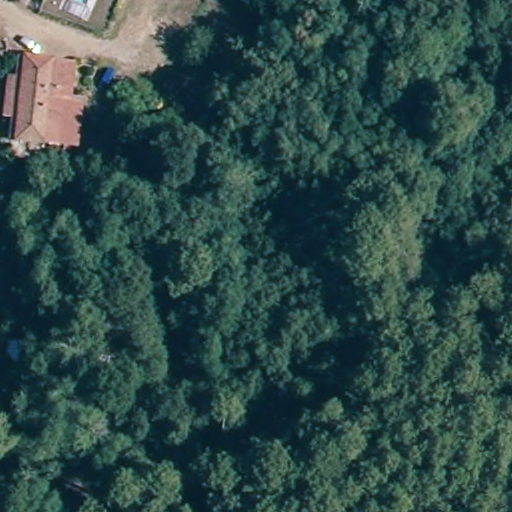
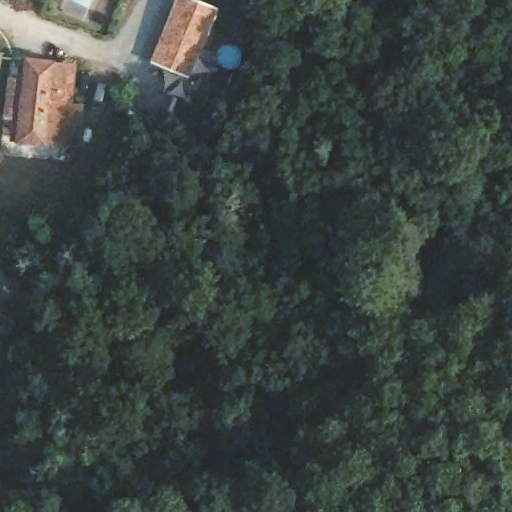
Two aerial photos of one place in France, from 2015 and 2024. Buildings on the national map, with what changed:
new [(187,76),(150,61),(176,0),(201,0),(215,5),(187,76)]
unchanged [(22,56),(44,59),(63,61),(56,100),(71,101),(65,139),(12,134),(14,122),(0,121),(5,75),(20,78),(22,56)]

